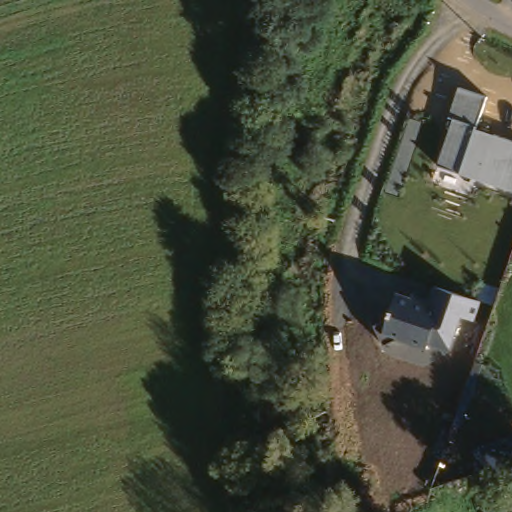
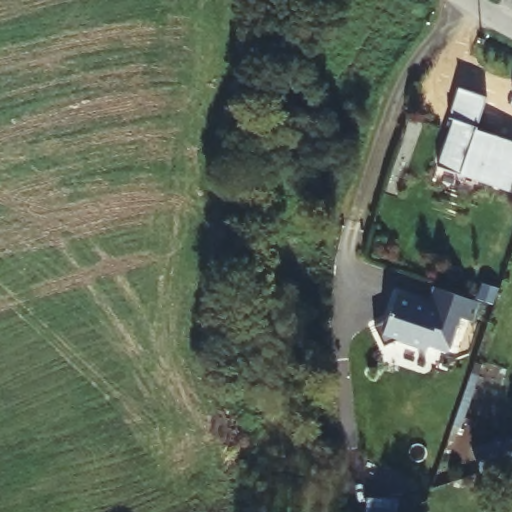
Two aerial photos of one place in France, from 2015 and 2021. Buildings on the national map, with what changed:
unchanged [(438,164),(451,120),(448,118),(458,86),(487,96),(476,129),(512,141),(512,192),(459,172),(438,164)]
unchanged [(475,322),(459,319),(451,349),(427,342),(425,348),(394,340),(384,346),(373,326),(389,316),(397,293),(429,303),(435,288),(480,301),(475,322)]
unchanged [(480,473),(476,461),(501,452),(505,465),(480,473)]

